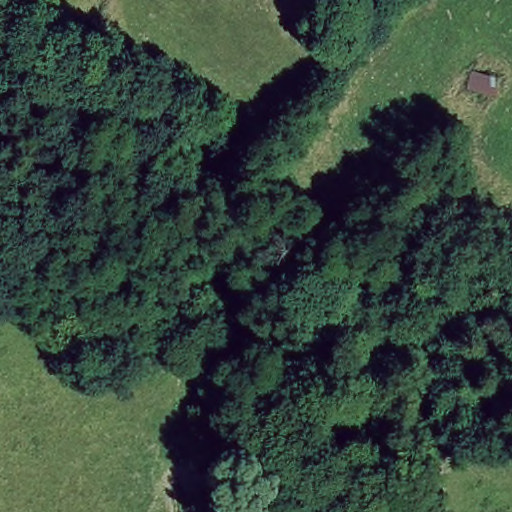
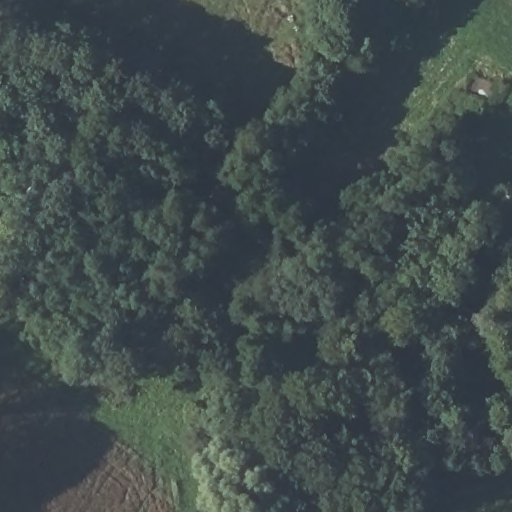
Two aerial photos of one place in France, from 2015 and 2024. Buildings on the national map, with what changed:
unchanged [(473,62),(505,76),(497,95),(466,84),(473,62)]

